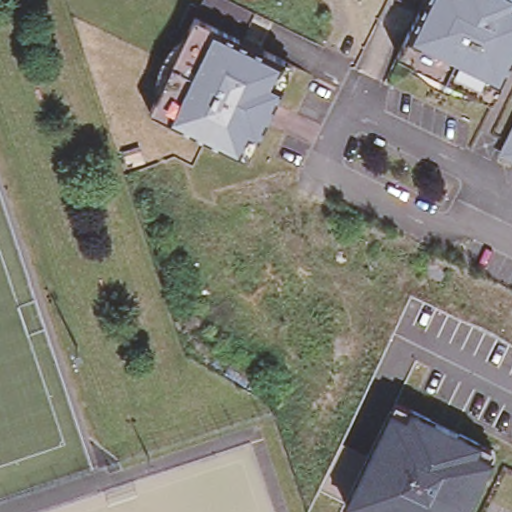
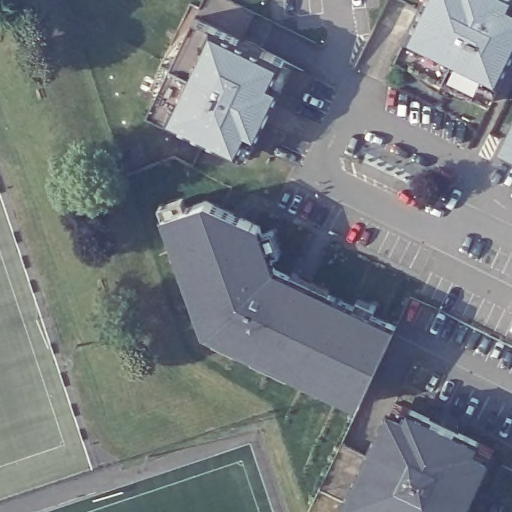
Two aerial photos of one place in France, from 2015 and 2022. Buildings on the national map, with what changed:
unchanged [(397,55),(420,11),(423,13),(431,0),(512,0),(512,52),(510,55),(512,56),(512,64),(492,102),(475,94),(470,103),(412,73),(415,64),(397,55)]
unchanged [(217,150),(218,146),(195,135),(193,139),(149,117),(157,99),(148,95),(175,36),(185,40),(193,22),(240,45),(282,65),(292,70),(282,91),(273,109),(268,107),(260,126),(265,128),(257,145),(247,165),(238,161),(217,150)]
unchanged [(512,124),(512,163),(497,155),(512,124)]
new [(320,393),(290,378),(288,381),(253,364),(255,360),(238,352),(236,355),(217,345),(215,345),(217,342),(206,336),(185,275),(178,254),(167,218),(163,207),(187,200),(190,210),(210,204),(263,230),(266,237),(276,234),(284,257),(273,261),(277,274),(294,282),(295,278),(332,296),(330,300),(355,312),(360,303),(378,312),(373,321),(397,333),(362,403),(357,412),(320,393)]
unchanged [(495,449),(466,512),(352,512),(342,507),(394,402),(495,449)]

